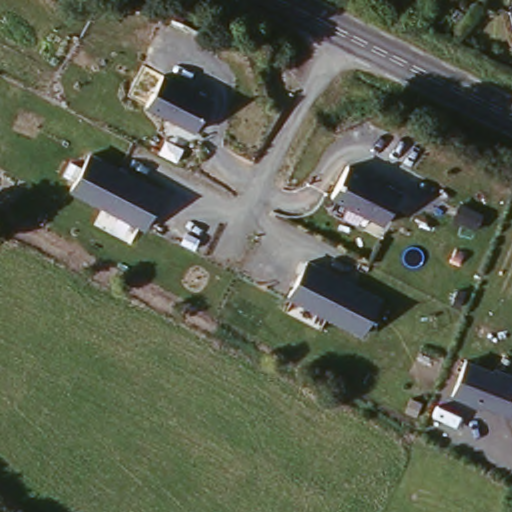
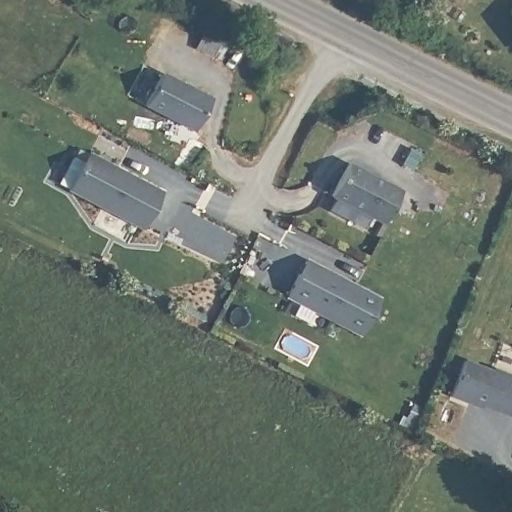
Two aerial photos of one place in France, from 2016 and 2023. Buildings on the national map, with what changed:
unchanged [(512,7),(512,27),(507,8),(512,7)]
unchanged [(211,94),(195,129),(130,95),(146,62),(211,94)]
unchanged [(166,191),(146,227),(74,190),(93,153),(166,191)]
unchanged [(401,188),(383,221),(335,195),(351,163),(401,188)]
unchanged [(379,297),(361,332),(290,295),(310,262),(379,297)]
unchanged [(495,369),(497,368),(512,374),(512,409),(510,414),(483,405),(455,394),(467,360),(495,369)]

